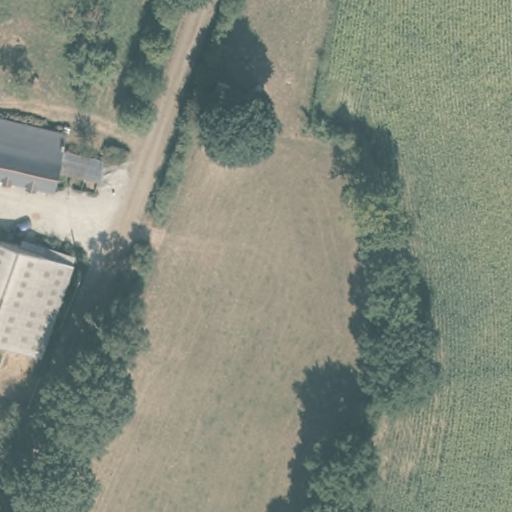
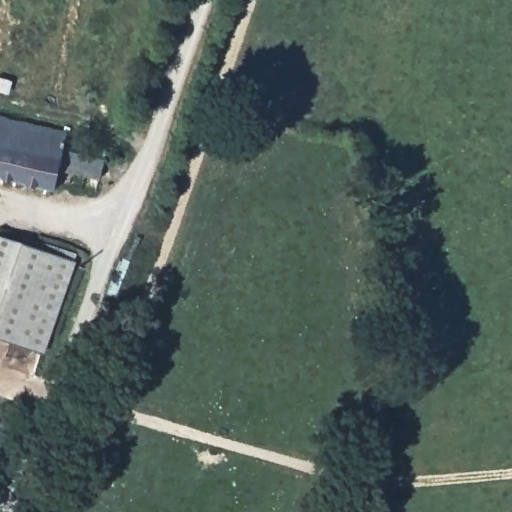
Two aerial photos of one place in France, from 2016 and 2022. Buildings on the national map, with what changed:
unchanged [(99,161),(95,178),(55,170),(51,188),(0,177),(0,120),(62,134),(59,152),(99,161)]
unchanged [(74,263),(42,355),(0,341),(0,238),(74,263)]

